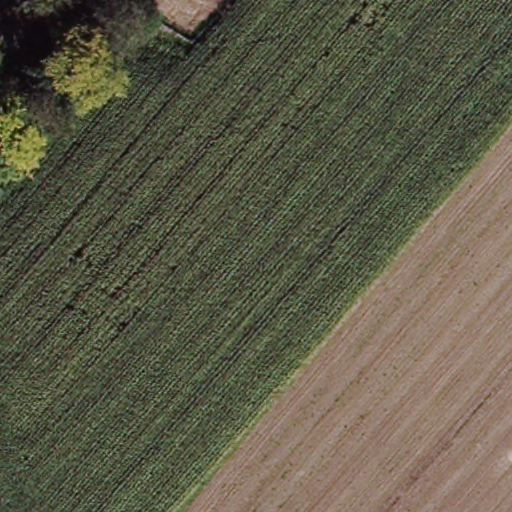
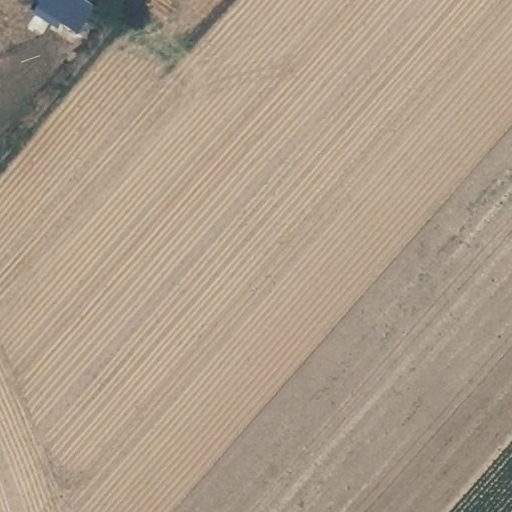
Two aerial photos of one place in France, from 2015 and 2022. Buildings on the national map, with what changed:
new [(77,3),(79,0),(82,0),(96,9),(89,20),(98,27),(84,49),(33,16),(43,0),(72,0),(77,3)]

